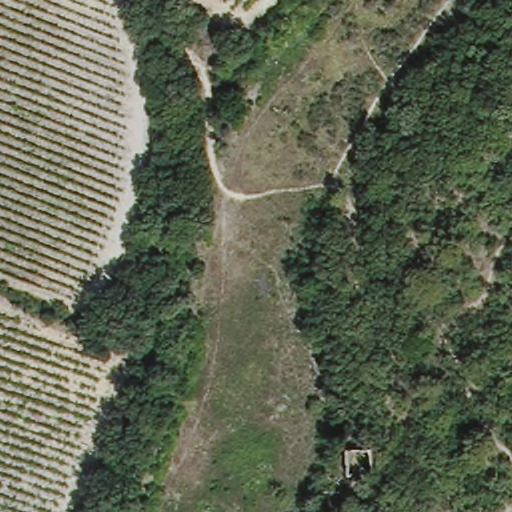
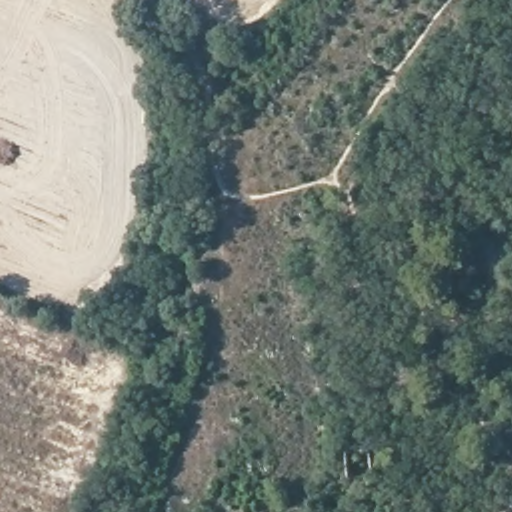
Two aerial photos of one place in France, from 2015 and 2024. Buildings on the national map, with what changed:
unchanged [(345,484),(338,454),(365,446),(369,478),(345,484)]

